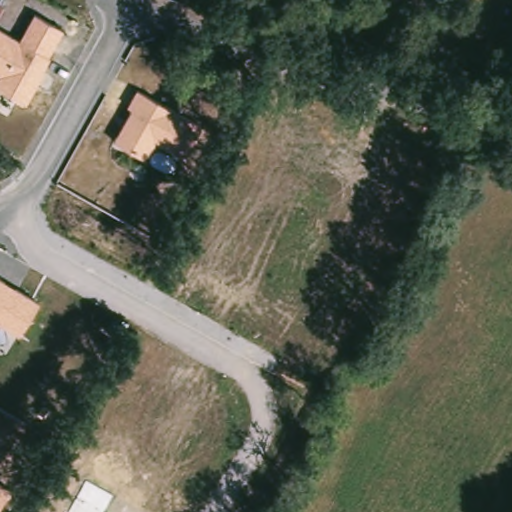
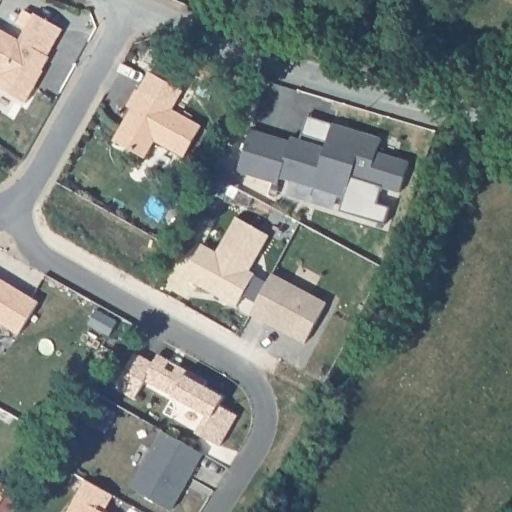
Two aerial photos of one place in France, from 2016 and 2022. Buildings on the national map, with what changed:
unchanged [(19,39),(34,13),(64,29),(25,102),(0,90),(0,28),(19,39)]
unchanged [(190,48),(211,57),(203,76),(182,67),(190,48)]
unchanged [(187,156),(157,141),(146,160),(115,144),(132,109),(127,107),(136,89),(202,122),(187,156)]
new [(288,142),(290,138),(324,149),(325,144),(300,136),(306,117),(331,125),(380,140),(375,154),(407,164),(398,195),(381,189),(376,205),(389,209),(383,227),(338,212),(342,199),(278,179),(276,186),(236,173),(249,131),(288,142)]
new [(202,245),(217,253),(237,218),(269,237),(249,272),(255,275),(236,307),(183,277),(202,245)]
new [(249,315),(271,274),(326,303),(304,344),(287,335),(265,323),(249,315)]
unchanged [(20,333),(0,323),(0,279),(41,302),(20,333)]
new [(134,353),(152,363),(157,355),(168,361),(164,369),(173,373),(177,366),(205,382),(203,386),(223,397),(218,406),(236,416),(219,447),(195,433),(205,416),(153,386),(156,381),(147,376),(134,400),(114,388),(134,353)]
new [(161,432),(202,455),(170,511),(129,488),(161,432)]
unchanged [(0,512),(0,479),(12,486),(0,512)]
new [(86,481),(113,496),(106,512),(68,512),(86,481)]

